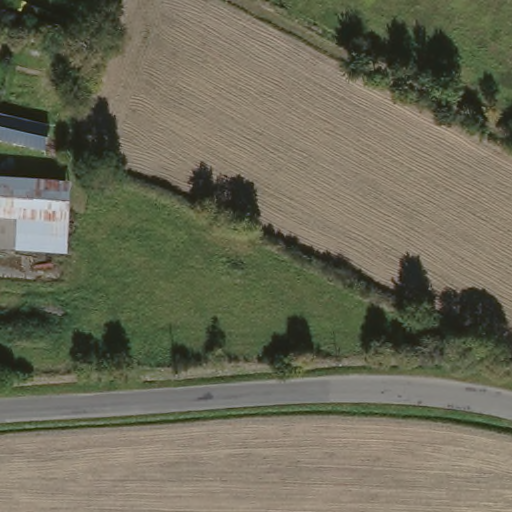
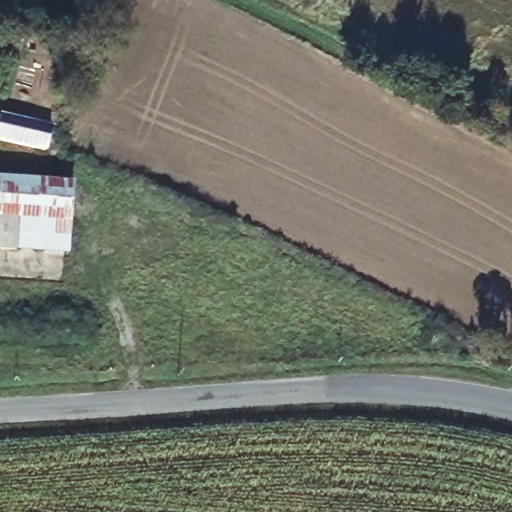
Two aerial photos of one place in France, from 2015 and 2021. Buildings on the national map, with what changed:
unchanged [(67,183),(61,252),(16,248),(18,214),(0,212),(0,178),(67,183)]
unchanged [(0,247),(0,212),(18,214),(16,248),(0,247)]

